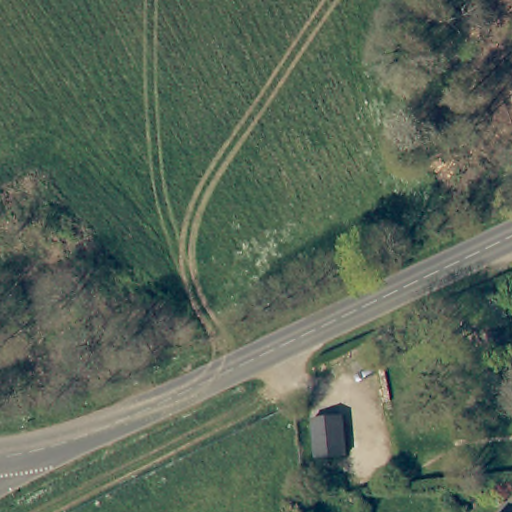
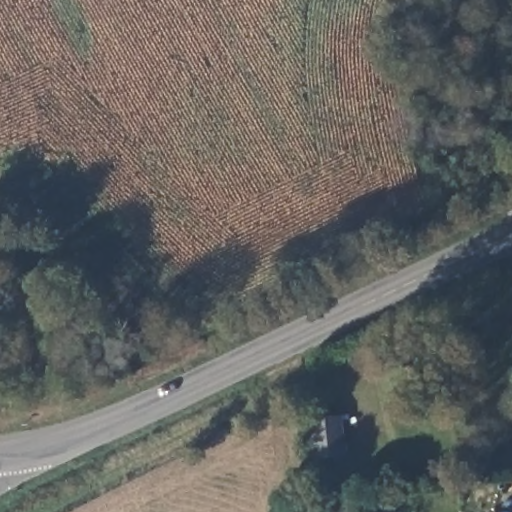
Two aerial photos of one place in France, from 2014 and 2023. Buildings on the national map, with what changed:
unchanged [(339,413),(344,453),(315,457),(309,417),(339,413)]

